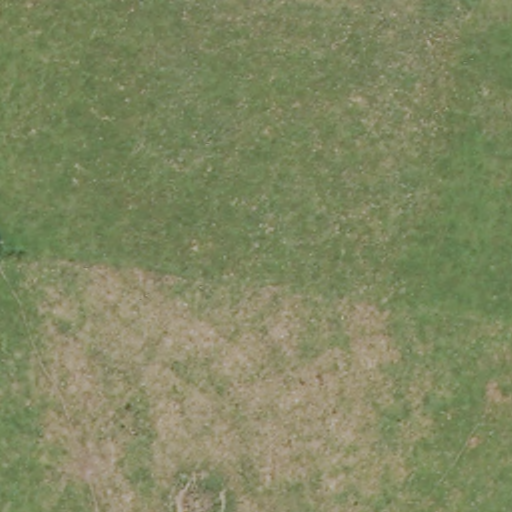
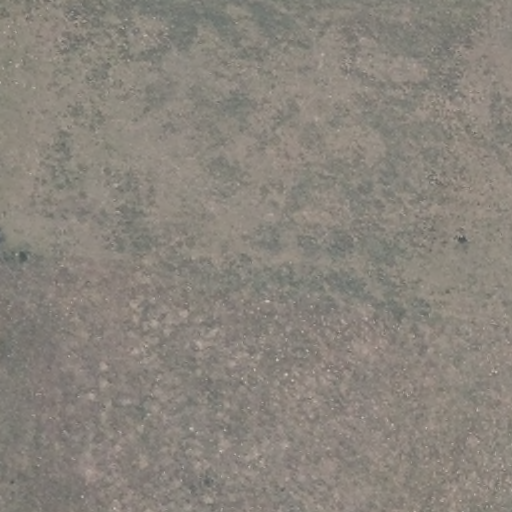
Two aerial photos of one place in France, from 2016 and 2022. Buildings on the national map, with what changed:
[]

